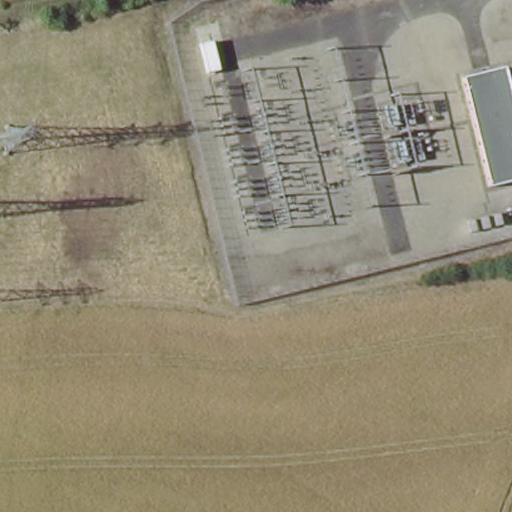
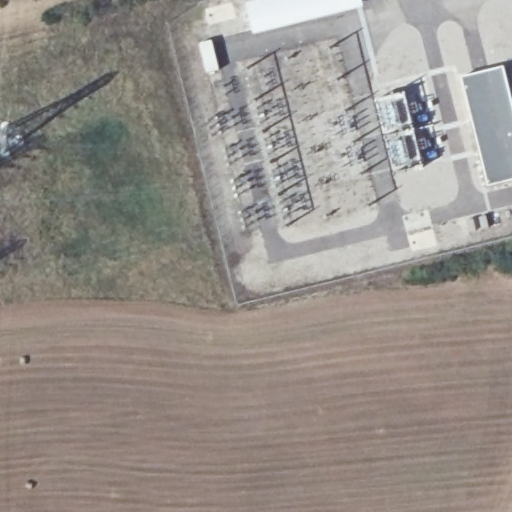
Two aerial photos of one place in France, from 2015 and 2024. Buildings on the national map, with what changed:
new [(258,0),(360,0),(362,6),(253,33),(246,3),(258,0)]
unchanged [(503,67),(512,106),(512,179),(487,184),(461,77),(503,67)]

